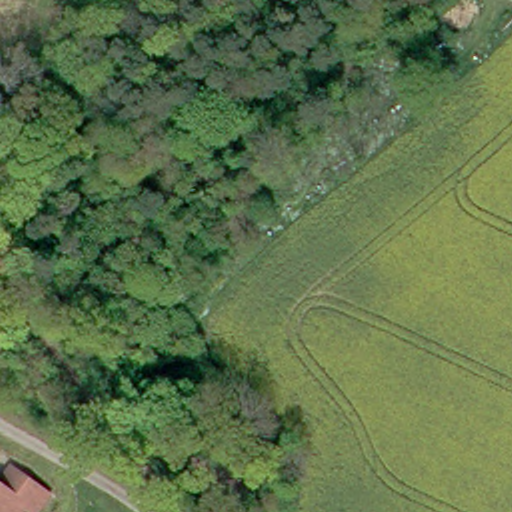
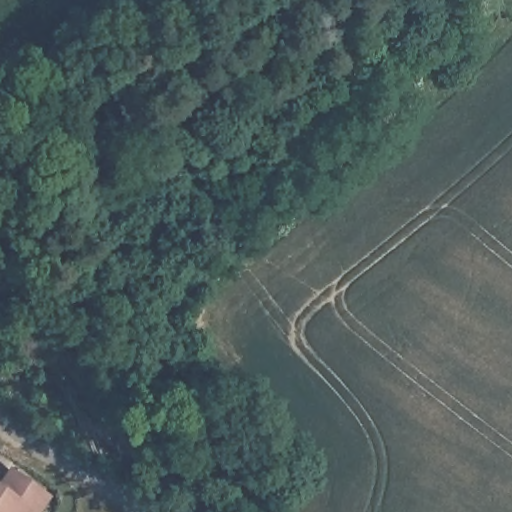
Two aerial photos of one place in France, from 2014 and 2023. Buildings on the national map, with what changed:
unchanged [(20,469),(47,488),(35,506),(25,498),(16,512),(0,512),(0,480),(9,486),(20,469)]

